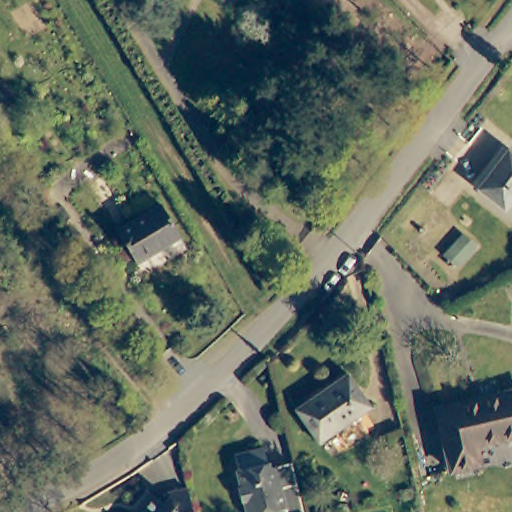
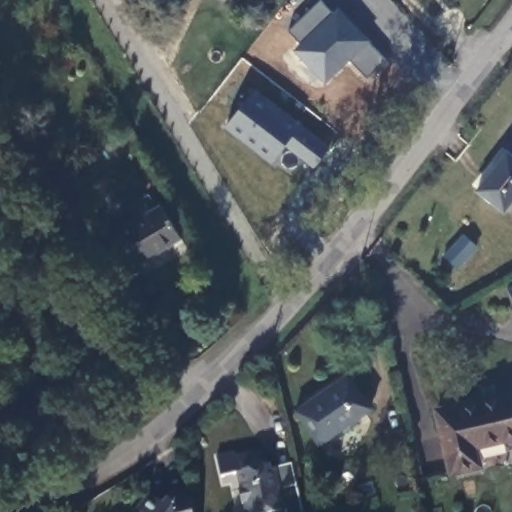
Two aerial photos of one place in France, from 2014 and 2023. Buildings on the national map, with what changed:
new [(320,0),(335,14),(338,10),(386,60),(368,77),(349,57),(325,80),(296,50),(301,45),(287,31),(320,0)]
new [(254,88),(330,148),(313,169),(285,146),(271,163),(224,126),(254,88)]
unchanged [(476,178),(512,150),(512,197),(500,207),(476,178)]
unchanged [(116,232),(160,205),(180,238),(137,265),(116,232)]
unchanged [(475,249),(456,267),(444,254),(463,236),(475,249)]
unchanged [(372,407),(323,442),(300,409),(350,375),(372,407)]
unchanged [(478,466),(451,473),(435,413),(512,392),(512,438),(474,448),(478,466)]
unchanged [(240,505),(236,490),(237,489),(233,472),(236,472),(232,457),(260,450),(263,463),(266,462),(267,467),(287,462),(290,477),(300,512),(243,512),(241,505),(240,505)]
unchanged [(136,494),(150,505),(155,497),(155,495),(174,491),(176,500),(179,512),(126,512),(124,510),(136,494)]

